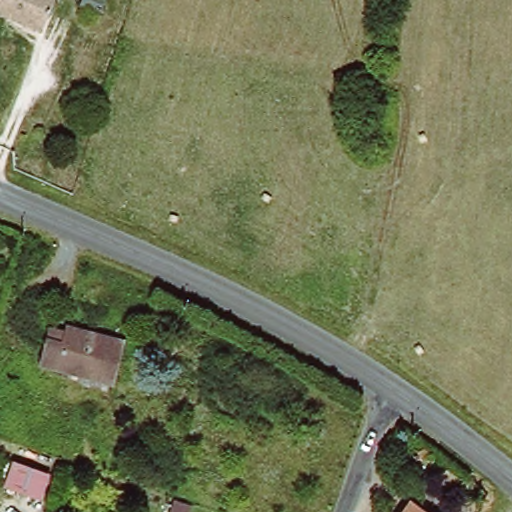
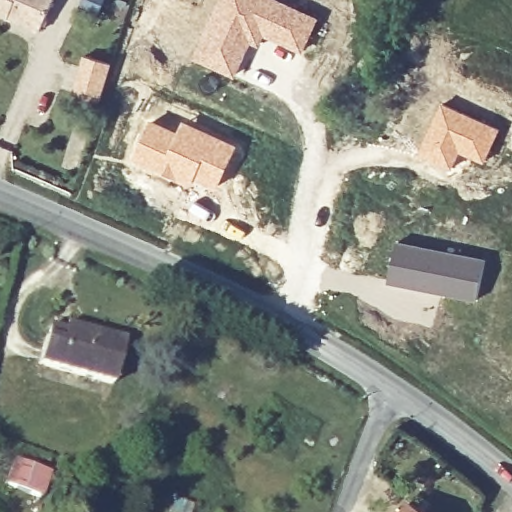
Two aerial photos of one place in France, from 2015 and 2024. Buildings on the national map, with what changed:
unchanged [(39,29),(0,12),(0,0),(51,0),(39,29)]
unchanged [(81,0),(105,0),(100,12),(80,5),(81,0)]
new [(216,0),(282,0),(320,17),(302,54),(263,37),(259,46),(251,42),(235,77),(185,59),(216,0)]
new [(85,55),(111,63),(100,101),(73,93),(85,55)]
new [(440,102),(500,127),(484,165),(460,155),(453,168),(418,152),(440,102)]
new [(150,121),(178,131),(183,120),(239,144),(217,190),(195,181),(191,187),(131,162),(150,121)]
new [(396,241),(486,258),(477,301),(387,282),(396,241)]
unchanged [(61,332),(100,342),(120,347),(107,388),(34,368),(40,345),(42,337),(59,342),(60,338),(61,332)]
unchanged [(10,457),(51,472),(41,501),(0,486),(10,457)]
unchanged [(418,512),(407,512),(410,507),(418,512)]

